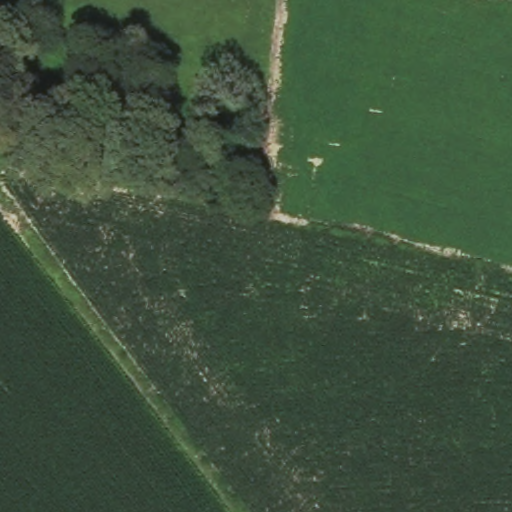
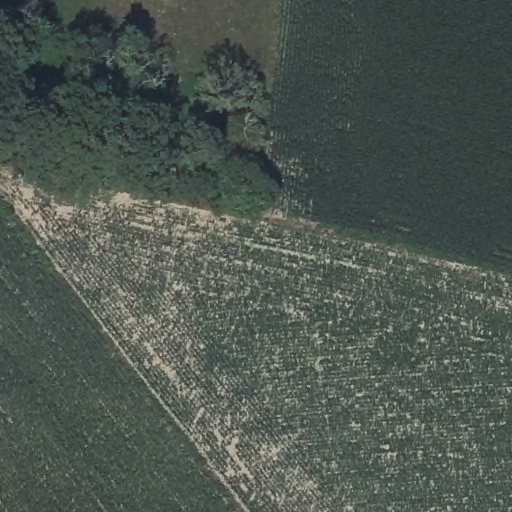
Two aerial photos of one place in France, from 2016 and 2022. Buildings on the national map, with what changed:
unchanged [(22,91),(0,90),(0,65),(22,68),(22,91)]

